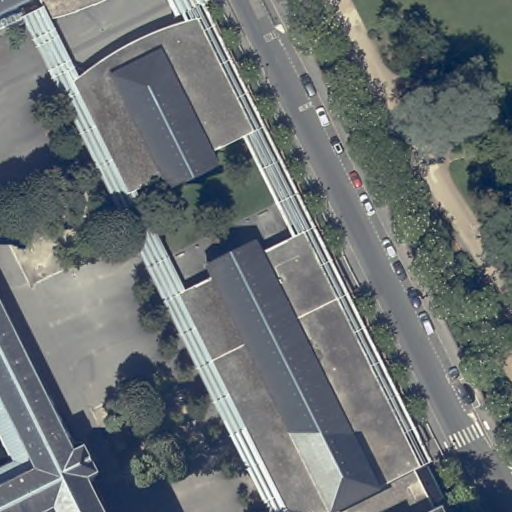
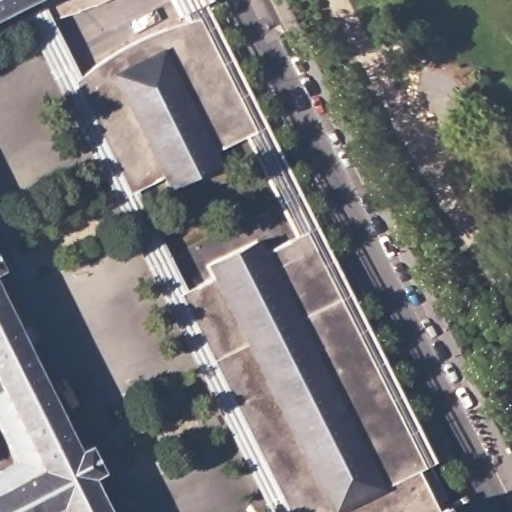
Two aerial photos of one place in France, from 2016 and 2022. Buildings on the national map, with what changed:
unchanged [(0,0),(35,0),(0,17),(0,0)]
unchanged [(68,18),(50,23),(45,11),(39,0),(111,0),(93,9),(68,18)]
unchanged [(185,295),(179,298),(284,512),(267,512),(26,21),(45,11),(50,23),(79,83),(75,86),(130,199),(136,196),(185,295)]
unchanged [(90,74),(115,56),(148,39),(184,26),(206,21),(261,134),(214,158),(219,170),(169,194),(164,183),(136,196),(130,199),(75,86),(79,83),(90,74)]
unchanged [(179,298),(185,295),(213,282),(206,270),(257,246),(263,258),(311,235),(442,503),(434,507),(437,510),(439,512),(284,512),(179,298)]
unchanged [(76,457),(75,452),(78,451),(80,455),(83,453),(95,477),(86,482),(101,512),(0,512),(0,474),(16,467),(0,436),(0,306),(74,458),(76,457)]

